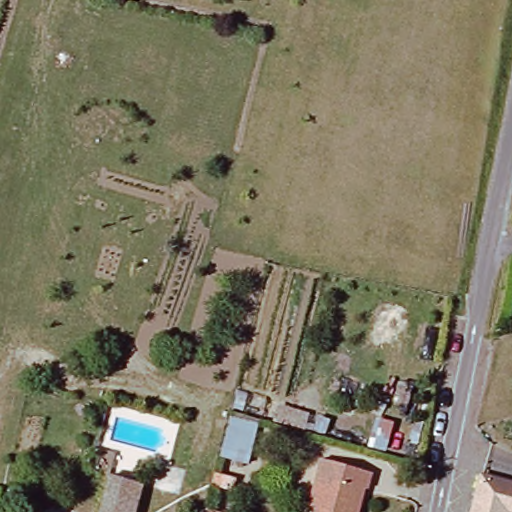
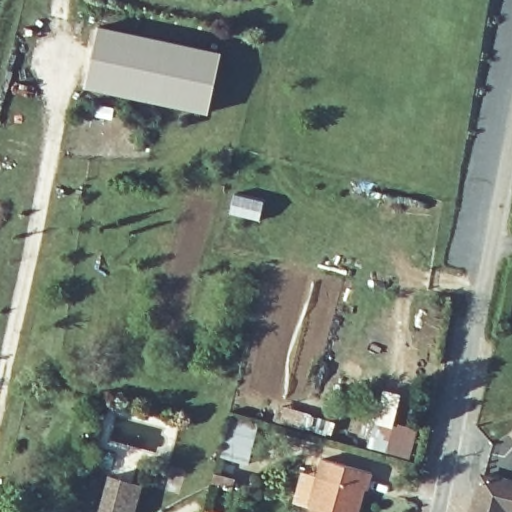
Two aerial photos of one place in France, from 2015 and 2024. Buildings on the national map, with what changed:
new [(95,26),(220,52),(208,111),(83,85),(95,26)]
new [(402,394),(395,421),(419,428),(412,457),(370,447),(384,389),(402,394)]
unchanged [(372,471),(365,492),(355,489),(348,512),(305,512),(321,456),(372,471)]
unchanged [(512,484),(512,512),(469,512),(479,474),(512,484)]
unchanged [(129,512),(95,512),(104,475),(136,483),(129,512)]
unchanged [(243,509),(242,512),(216,512),(218,503),(243,509)]

